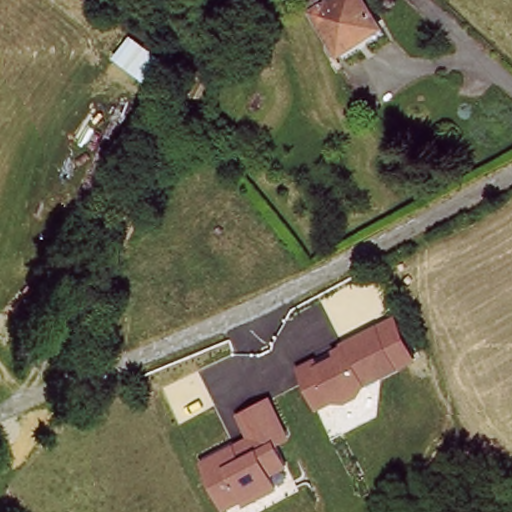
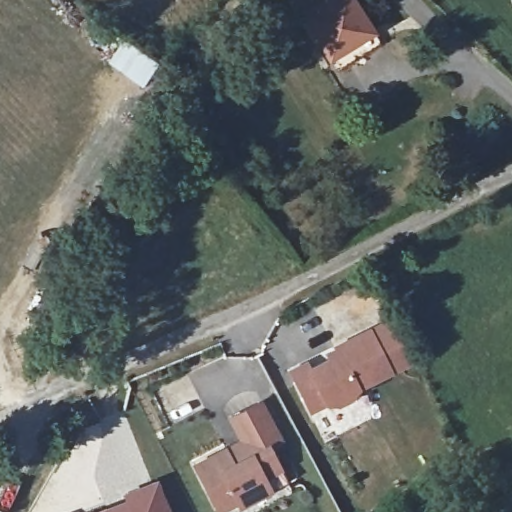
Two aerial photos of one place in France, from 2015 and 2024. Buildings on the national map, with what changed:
unchanged [(297,1),(299,0),(358,0),(378,33),(332,60),(297,1)]
unchanged [(306,412),(284,369),(304,360),(307,366),(318,360),(327,344),(369,327),(395,372),(306,412)]
unchanged [(285,442),(273,449),(283,472),(268,479),(274,492),(239,510),(235,505),(220,512),(216,512),(192,464),(239,441),(229,418),(264,400),(285,442)]
new [(123,499),(120,494),(156,480),(169,512),(91,512),(123,499)]

